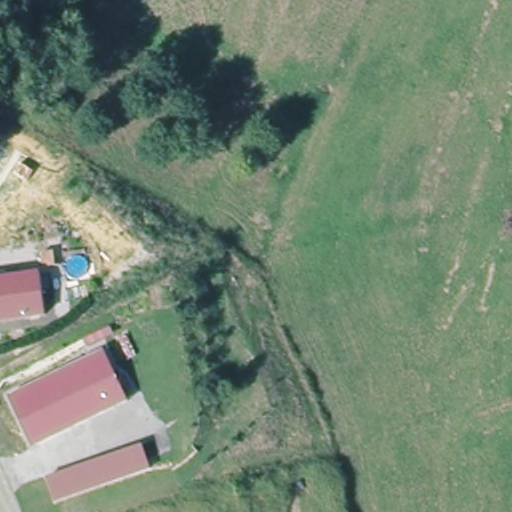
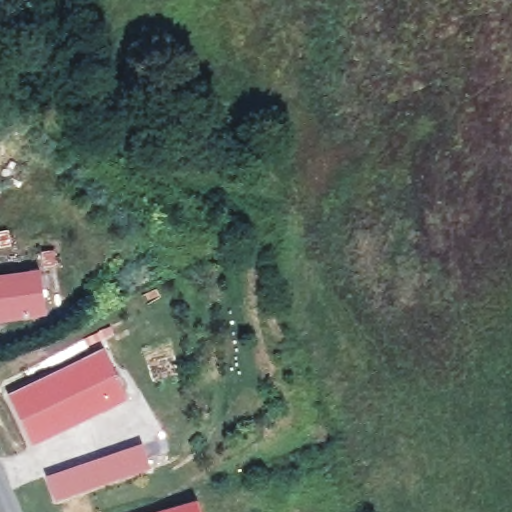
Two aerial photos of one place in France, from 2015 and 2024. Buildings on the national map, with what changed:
unchanged [(0,324),(0,280),(39,275),(44,319),(0,324)]
unchanged [(130,401),(33,444),(10,395),(107,350),(130,401)]
unchanged [(151,469),(56,500),(49,477),(143,445),(151,469)]
new [(201,512),(160,512),(198,501),(201,512)]

